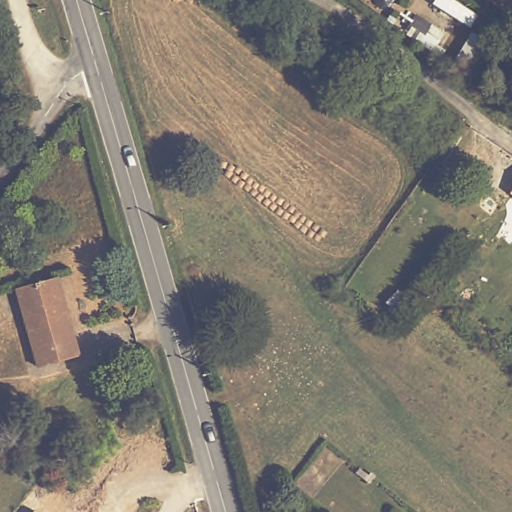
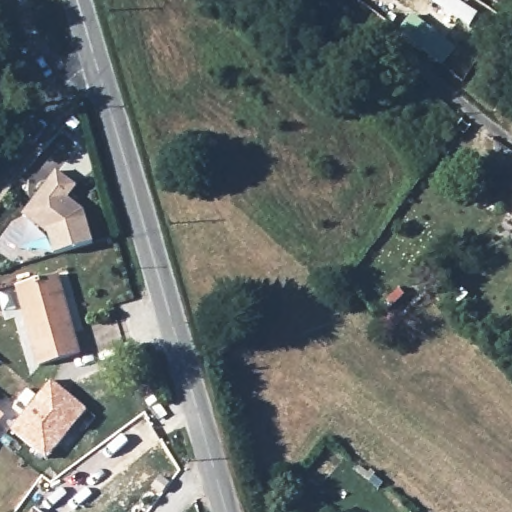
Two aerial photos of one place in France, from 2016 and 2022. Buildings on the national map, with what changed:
unchanged [(443,0),(446,0),(466,12),(453,29),(432,18),(443,0)]
unchanged [(505,0),(496,15),(475,1),(475,0),(505,0)]
unchanged [(412,31),(420,18),(432,25),(445,34),(437,45),(446,51),(442,56),(422,43),(424,39),(412,31)]
new [(56,171),(78,188),(69,200),(85,211),(93,244),(54,256),(46,232),(21,215),(56,171)]
unchanged [(512,224),(512,241),(510,244),(499,233),(510,222),(512,224)]
unchanged [(17,288),(58,277),(79,356),(39,367),(17,288)]
new [(52,380),(87,410),(45,460),(9,430),(52,380)]
unchanged [(2,417),(0,419),(0,416),(2,417)]
unchanged [(34,511),(35,512),(34,512),(34,511)]

